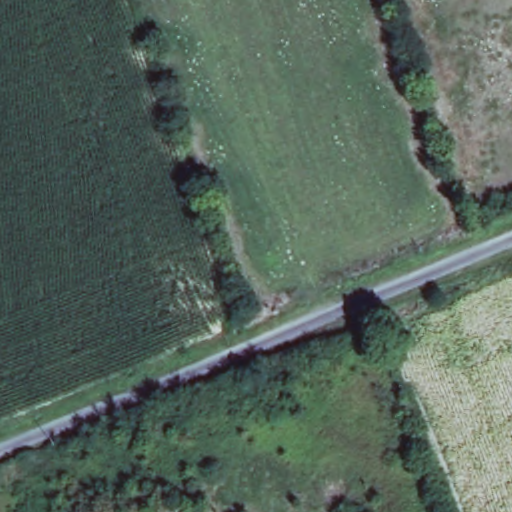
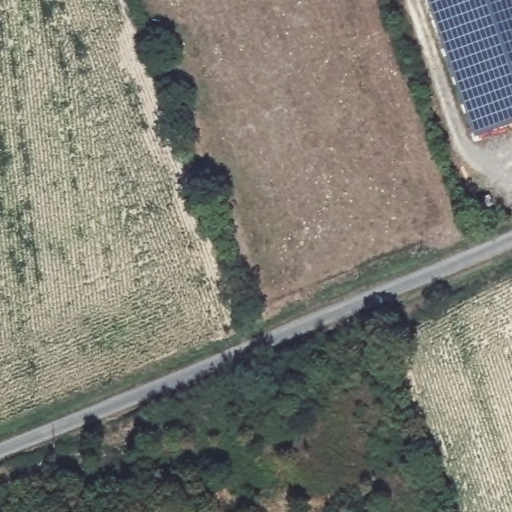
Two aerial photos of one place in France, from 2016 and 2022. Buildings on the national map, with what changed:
new [(512,121),(477,133),(429,0),(512,0),(512,121)]

